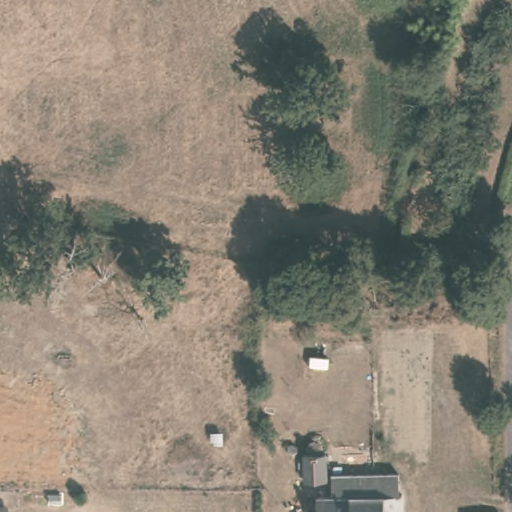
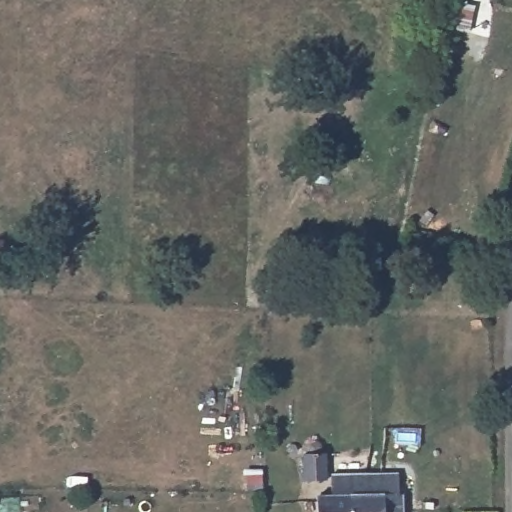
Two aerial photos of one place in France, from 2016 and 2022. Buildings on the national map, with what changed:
unchanged [(325,486),(307,487),(306,458),(325,457),(325,486)]
unchanged [(400,493),(403,493),(404,512),(319,512),(318,501),(330,500),(330,479),(400,474),(400,493)]

